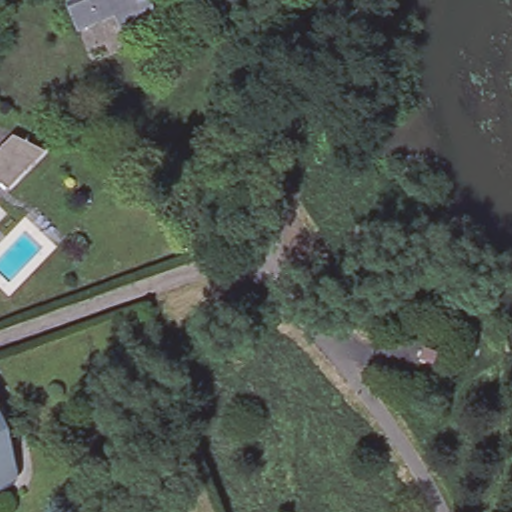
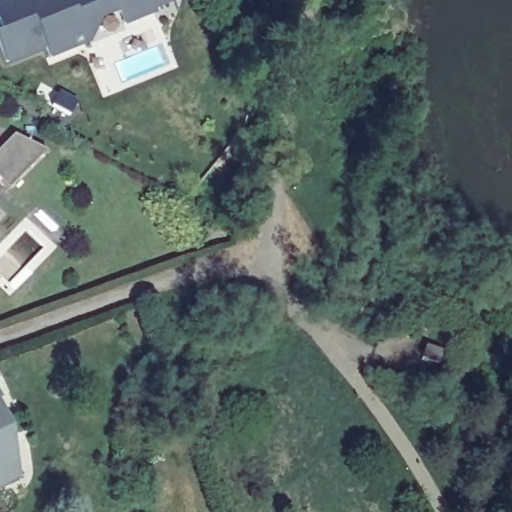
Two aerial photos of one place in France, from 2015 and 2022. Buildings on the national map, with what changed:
new [(98,27),(89,45),(50,59),(47,51),(5,64),(0,51),(0,31),(1,31),(0,28),(0,5),(13,0),(72,0),(85,32),(98,27)]
unchanged [(157,18),(129,28),(125,17),(85,32),(72,0),(150,0),(157,18)]
unchanged [(50,143),(11,182),(0,171),(0,144),(17,127),(50,143)]
unchanged [(0,422),(0,408),(5,420),(0,422)]
unchanged [(0,480),(0,451),(10,474),(0,480)]

